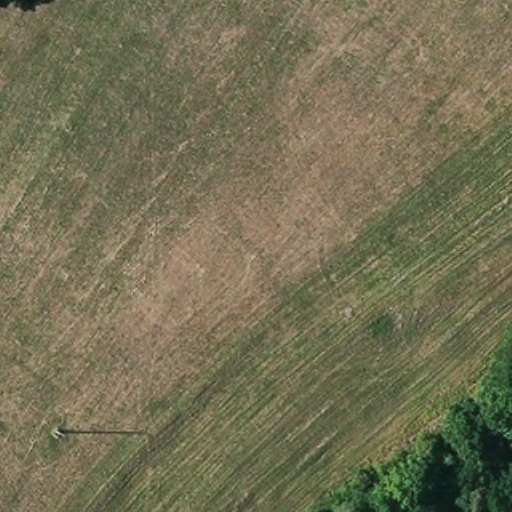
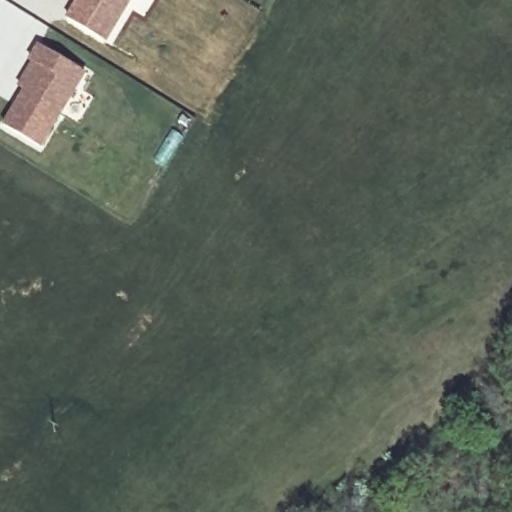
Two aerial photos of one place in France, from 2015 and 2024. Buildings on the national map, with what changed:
new [(153,0),(143,15),(128,6),(106,42),(64,16),(74,0),(153,0)]
new [(21,87),(16,84),(37,42),(86,71),(41,149),(0,125),(21,87)]

